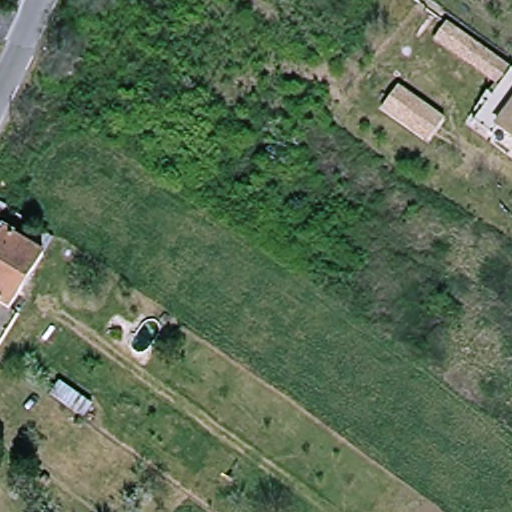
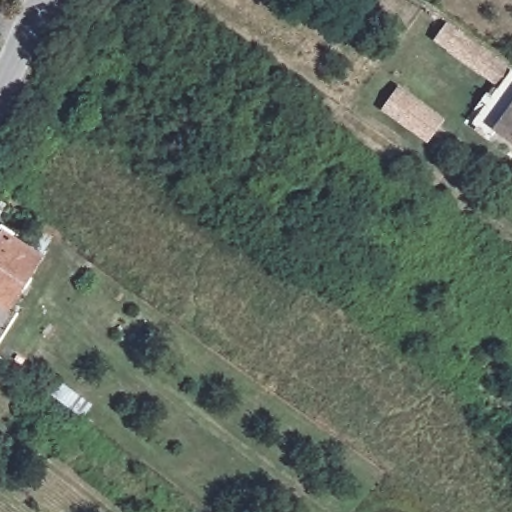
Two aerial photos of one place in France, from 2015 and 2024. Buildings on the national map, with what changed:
unchanged [(512,65),(512,132),(505,126),(499,135),(480,120),(507,84),(427,25),(438,10),(512,65)]
unchanged [(435,139),(390,105),(406,83),(451,117),(435,139)]
unchanged [(6,225),(47,253),(11,306),(0,298),(0,233),(6,225)]

